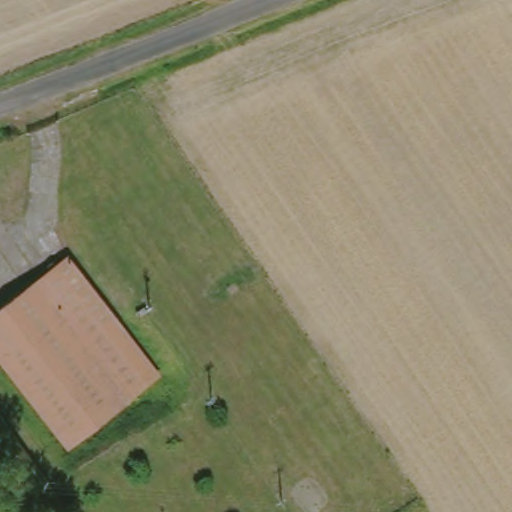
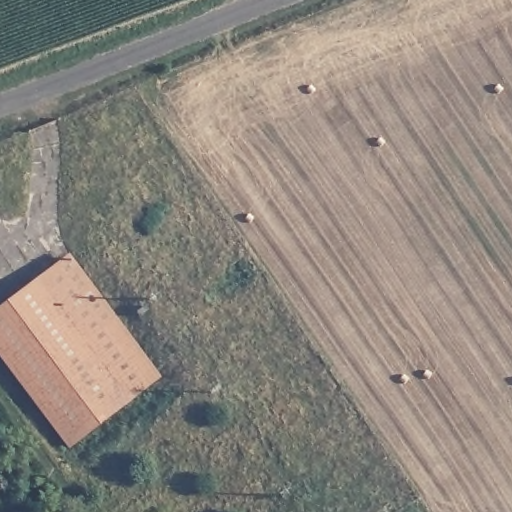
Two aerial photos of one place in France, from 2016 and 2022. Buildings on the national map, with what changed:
unchanged [(160,380),(72,447),(0,351),(0,313),(72,260),(160,380)]

